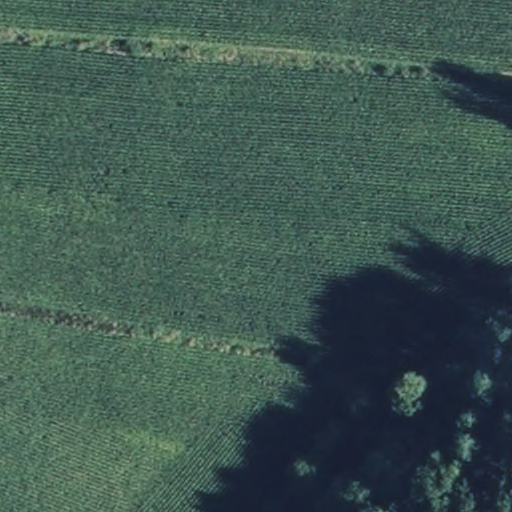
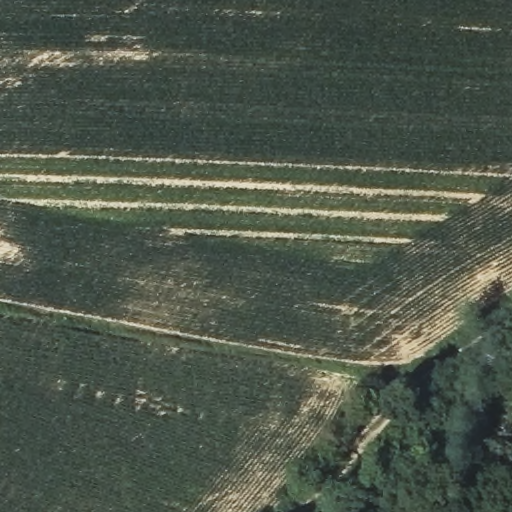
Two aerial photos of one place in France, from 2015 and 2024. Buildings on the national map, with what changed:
[]

